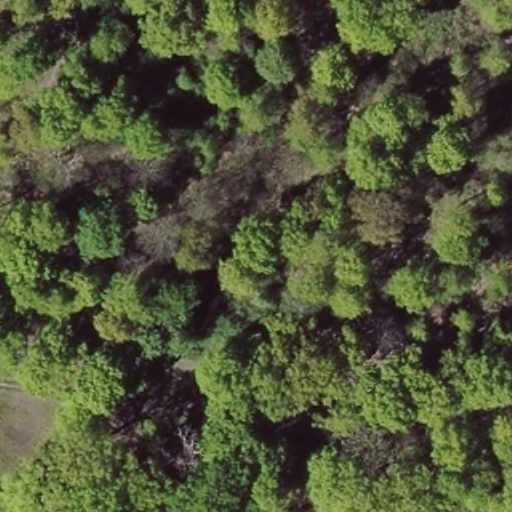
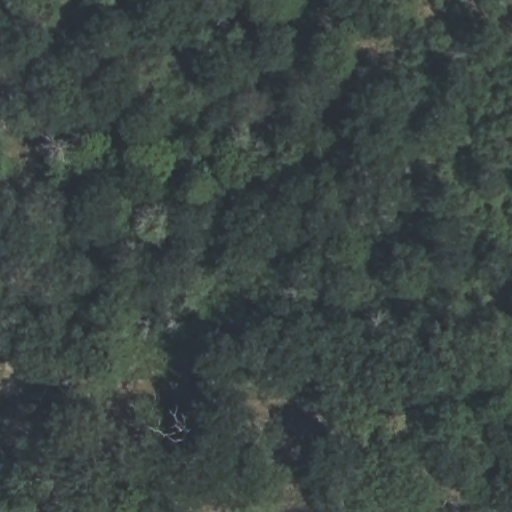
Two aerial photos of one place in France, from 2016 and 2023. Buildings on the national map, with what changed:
[]

